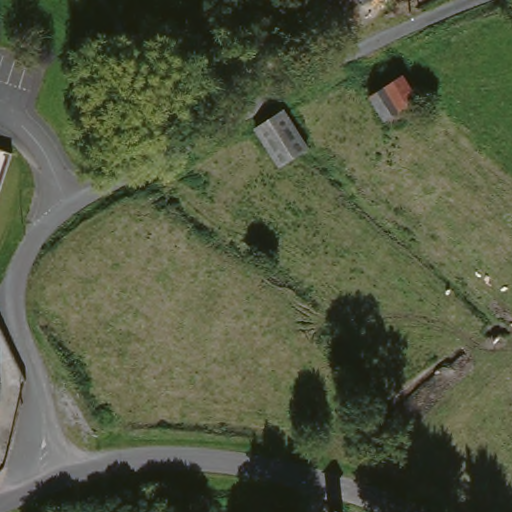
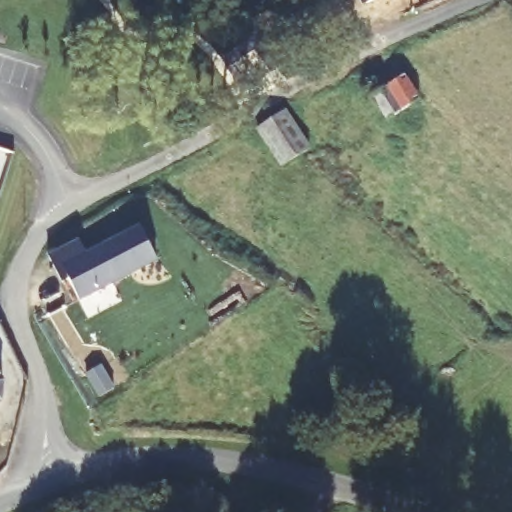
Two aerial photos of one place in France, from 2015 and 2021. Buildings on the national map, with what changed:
unchanged [(375,92),(407,73),(421,101),(414,105),(390,119),(375,92)]
unchanged [(260,126),(288,108),(314,146),(286,162),(260,126)]
new [(68,279),(61,282),(48,255),(78,239),(85,253),(139,226),(157,262),(78,301),(68,279)]

